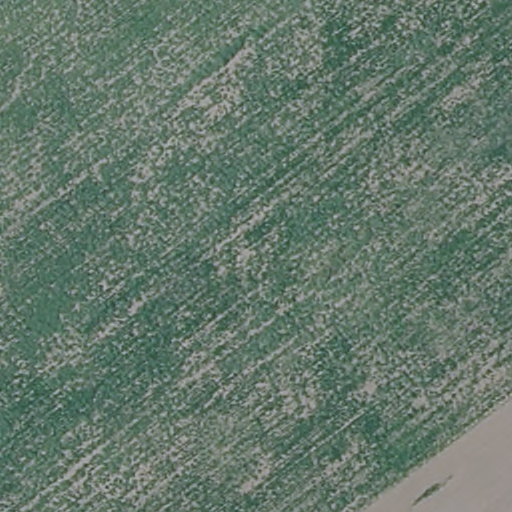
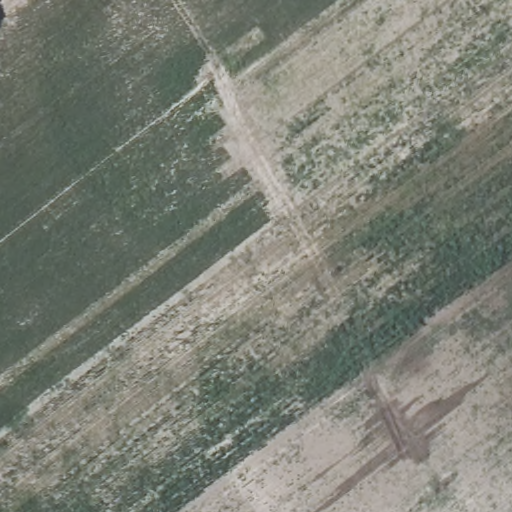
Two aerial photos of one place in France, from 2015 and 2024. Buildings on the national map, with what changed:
[]

